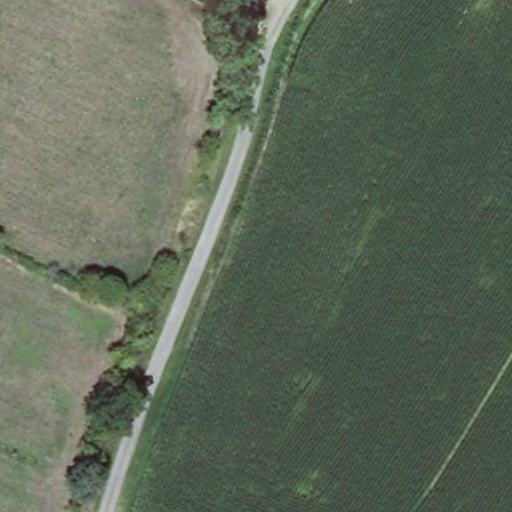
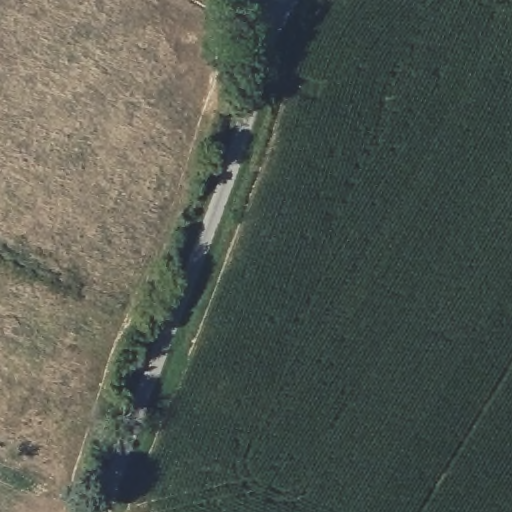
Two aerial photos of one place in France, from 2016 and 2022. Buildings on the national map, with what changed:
[]

